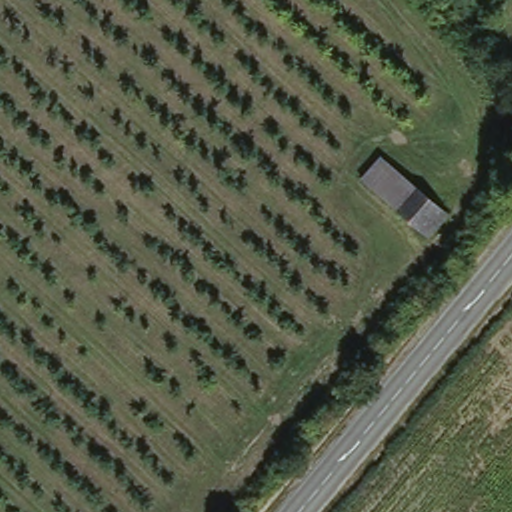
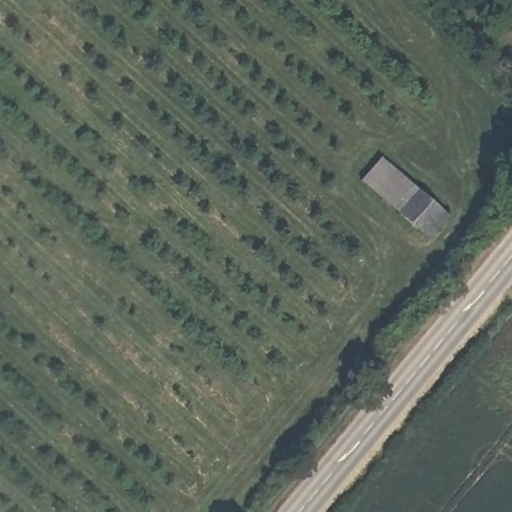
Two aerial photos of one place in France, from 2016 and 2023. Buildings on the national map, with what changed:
unchanged [(362,183),(386,158),(450,216),(429,241),(362,183)]

